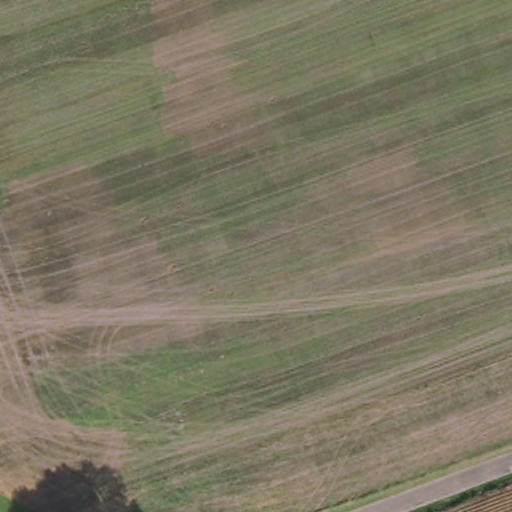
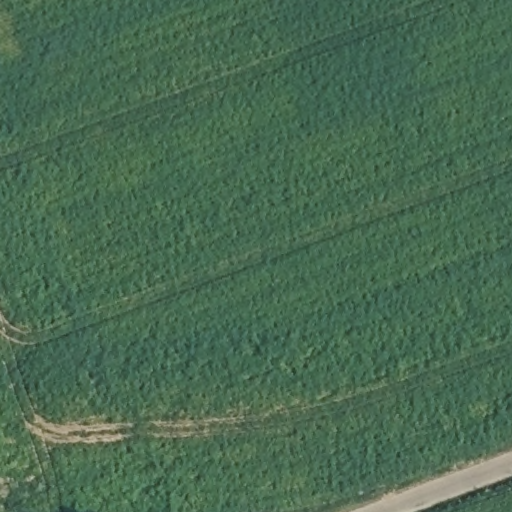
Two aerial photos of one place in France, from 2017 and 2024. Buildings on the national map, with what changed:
[]

